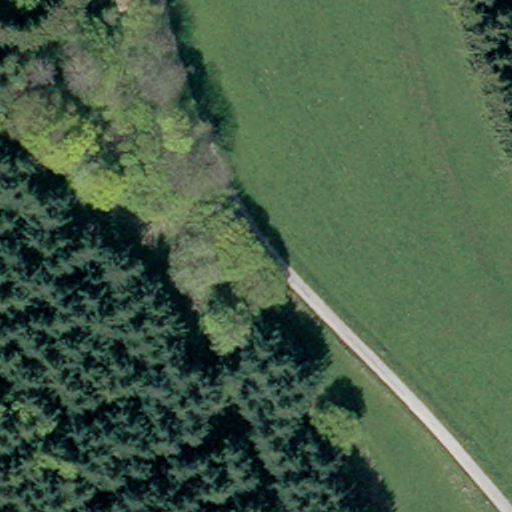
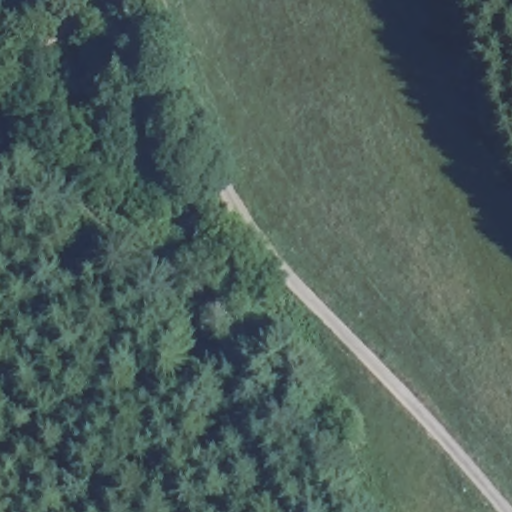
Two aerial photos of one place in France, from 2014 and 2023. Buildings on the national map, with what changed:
unchanged [(121,38),(112,0),(143,0),(147,30),(121,38)]

